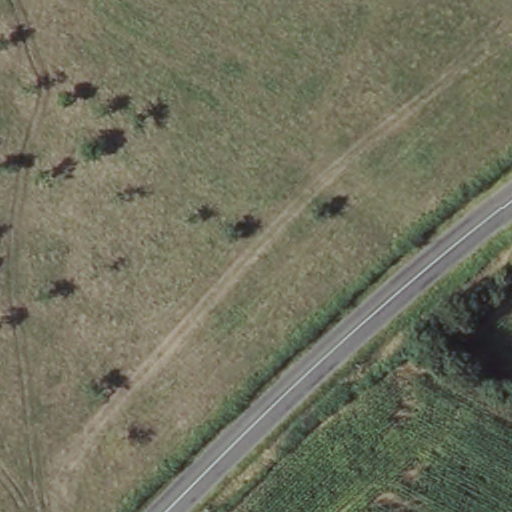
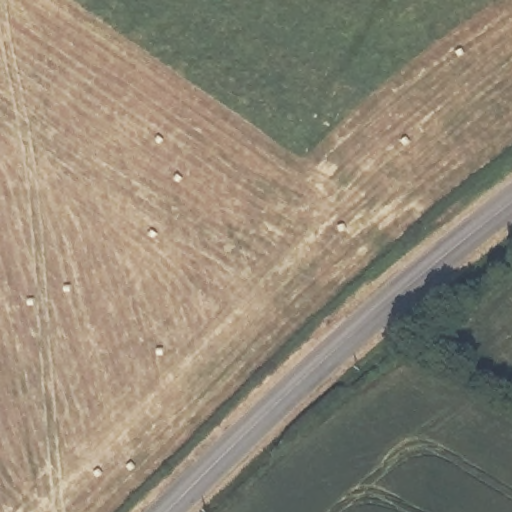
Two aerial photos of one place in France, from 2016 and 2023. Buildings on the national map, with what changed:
[]

